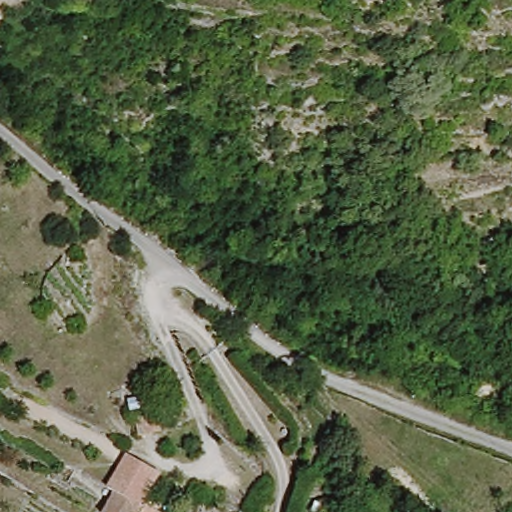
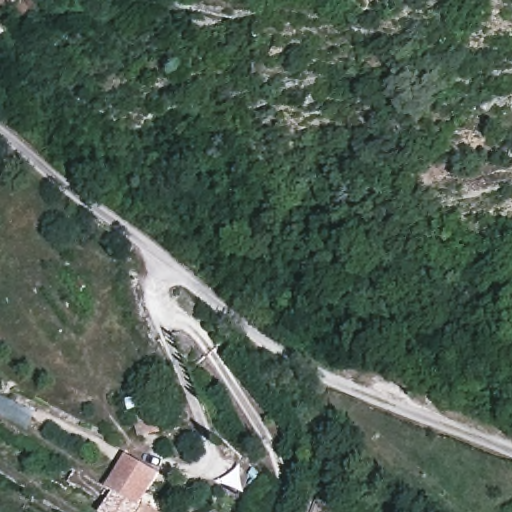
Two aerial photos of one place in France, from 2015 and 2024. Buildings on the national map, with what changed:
unchanged [(144,403),(147,414),(131,421),(127,409),(144,403)]
unchanged [(156,418),(162,438),(142,444),(136,424),(156,418)]
unchanged [(112,497),(102,492),(125,454),(165,472),(146,504),(162,512),(103,512),(112,497)]

